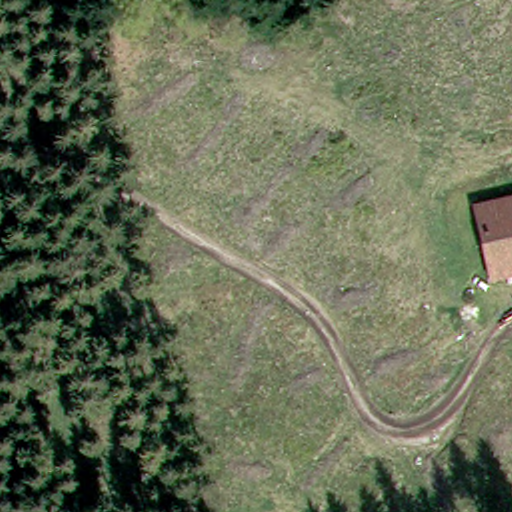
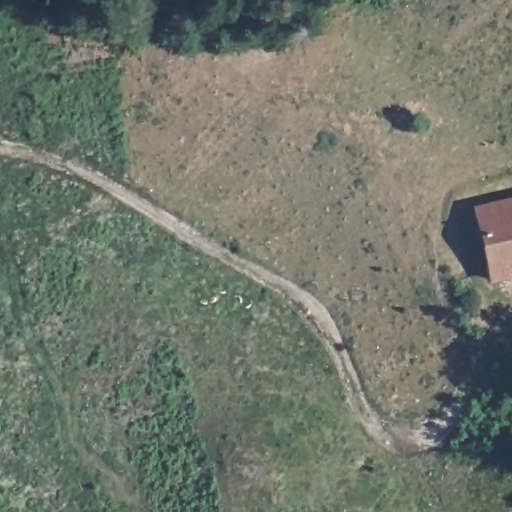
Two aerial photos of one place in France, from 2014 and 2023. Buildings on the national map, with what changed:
unchanged [(494,276),(475,208),(512,198),(512,271),(494,276)]

